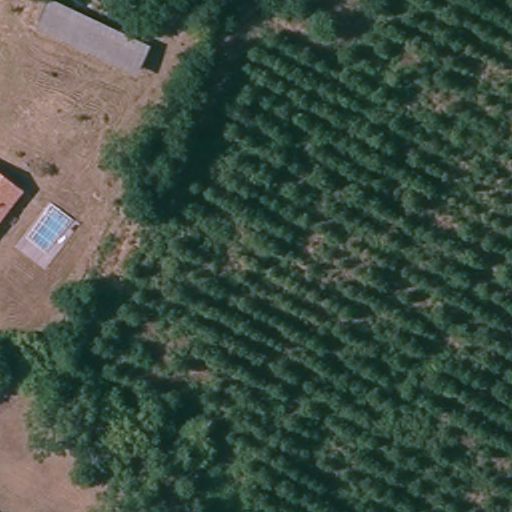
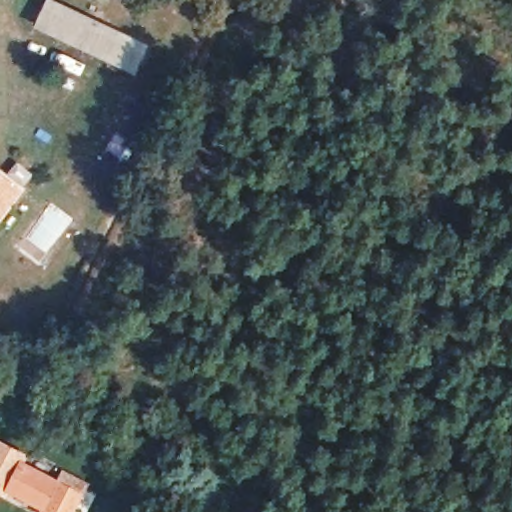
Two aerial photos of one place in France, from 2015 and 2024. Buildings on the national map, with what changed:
unchanged [(52,0),(150,50),(138,73),(38,21),(49,0),(52,0)]
unchanged [(24,194),(15,204),(0,222),(0,174),(24,194)]
demolished [(12,411),(0,433),(0,376),(17,386),(5,407),(12,411)]
new [(30,456),(27,461),(59,479),(64,470),(90,485),(77,512),(42,512),(44,510),(12,493),(8,500),(0,495),(0,440),(30,456)]

